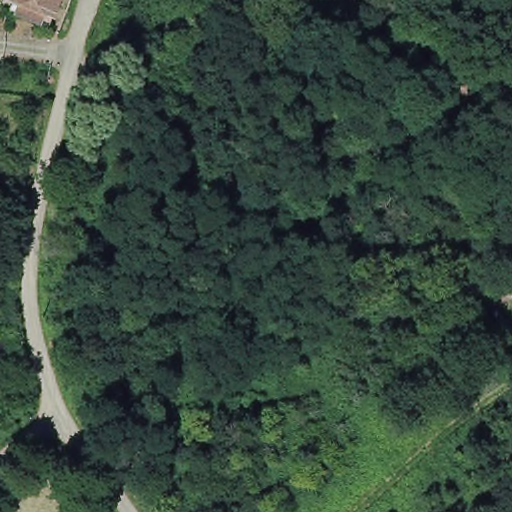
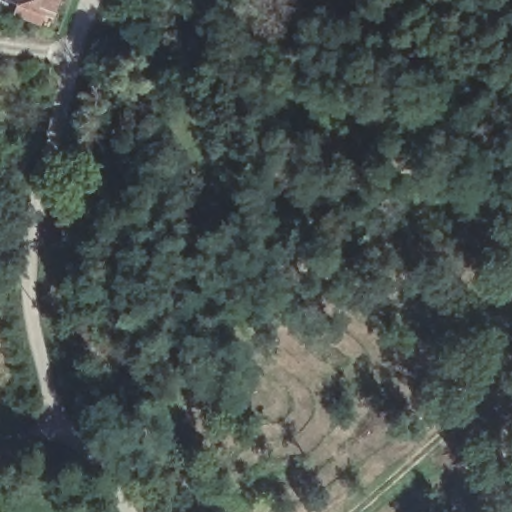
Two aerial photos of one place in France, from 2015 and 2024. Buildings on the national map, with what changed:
unchanged [(20,0),(64,0),(57,15),(20,0)]

